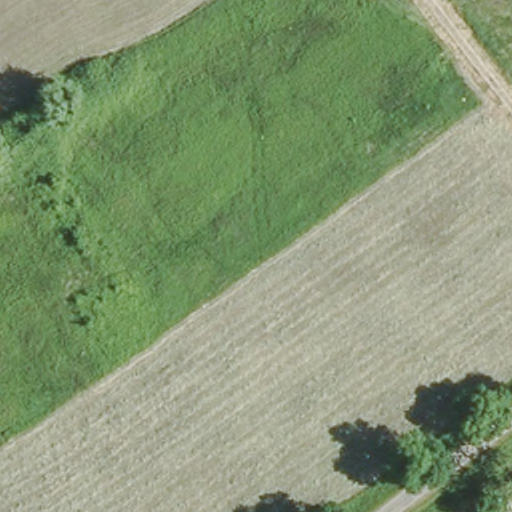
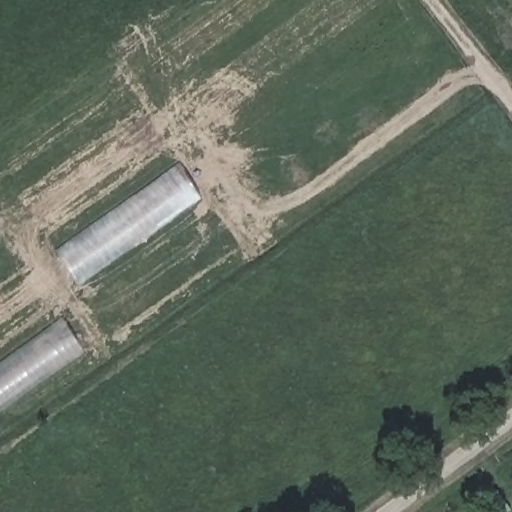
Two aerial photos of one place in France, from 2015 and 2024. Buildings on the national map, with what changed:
new [(179,163),(203,196),(80,288),(55,252),(179,163)]
new [(63,318),(85,354),(0,412),(0,361),(63,318)]
unchanged [(512,503),(500,512),(495,512),(482,492),(500,481),(512,500),(512,503)]

